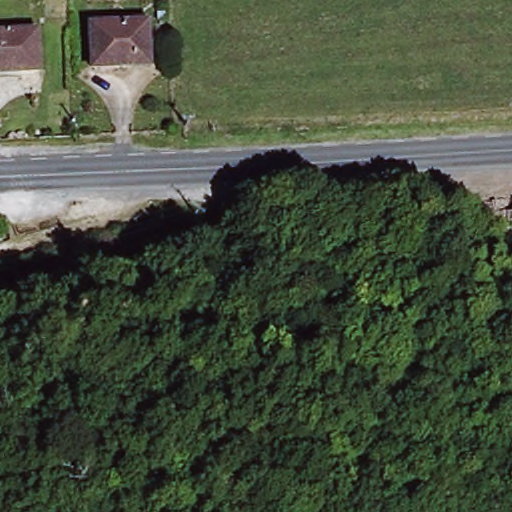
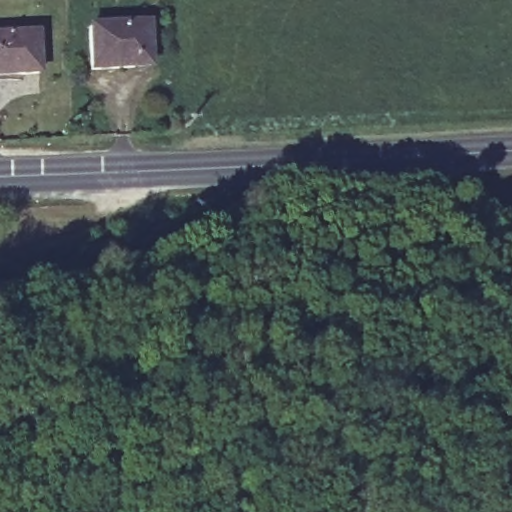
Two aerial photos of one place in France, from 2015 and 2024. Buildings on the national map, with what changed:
unchanged [(145,24),(150,67),(95,72),(93,28),(145,24)]
unchanged [(40,72),(0,76),(0,36),(35,32),(40,72)]

